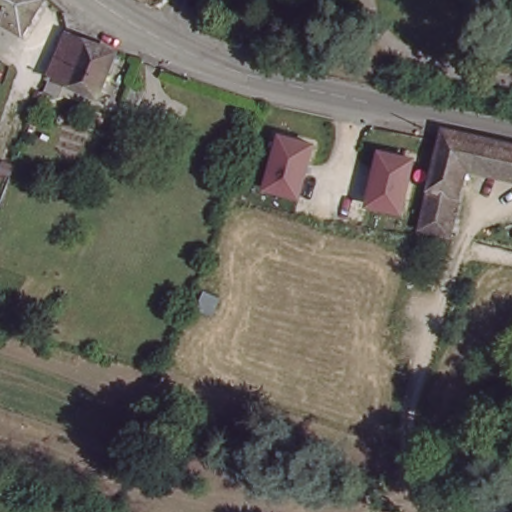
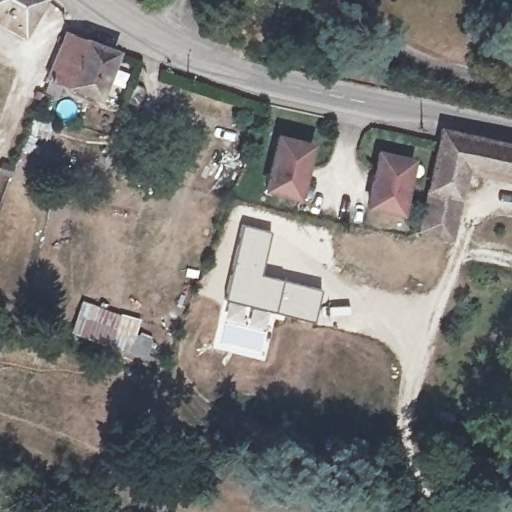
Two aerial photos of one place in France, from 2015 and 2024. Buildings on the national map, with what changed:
unchanged [(0,27),(0,0),(43,0),(47,4),(21,41),(0,27)]
unchanged [(120,51),(100,99),(46,77),(66,29),(120,51)]
unchanged [(153,116),(144,136),(127,128),(137,107),(153,116)]
unchanged [(300,201),(262,192),(276,134),(315,142),(300,201)]
unchanged [(427,201),(445,134),(512,149),(512,183),(473,172),(461,211),(453,237),(420,227),(427,201)]
unchanged [(402,217),(365,209),(378,147),(415,157),(402,217)]
unchanged [(0,218),(0,178),(16,184),(3,219),(0,218)]
new [(242,224),(272,232),(261,273),(322,289),(313,321),(222,298),(242,224)]
new [(82,299),(141,319),(137,331),(155,337),(147,360),(70,332),(82,299)]

